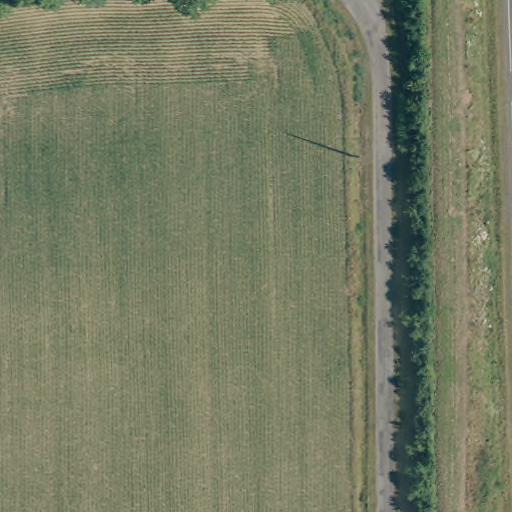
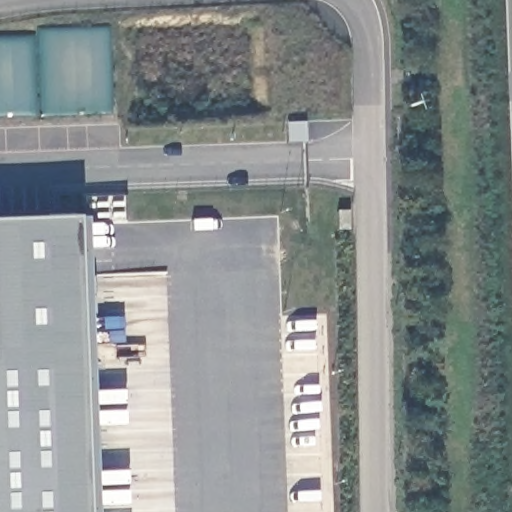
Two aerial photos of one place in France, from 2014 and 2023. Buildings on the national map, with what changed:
new [(349,211),(349,228),(338,229),(338,210),(349,211)]
new [(73,219),(84,218),(95,512),(0,512),(0,222),(73,219)]

